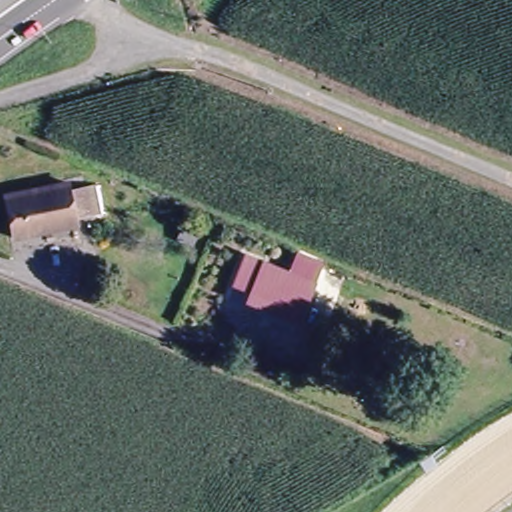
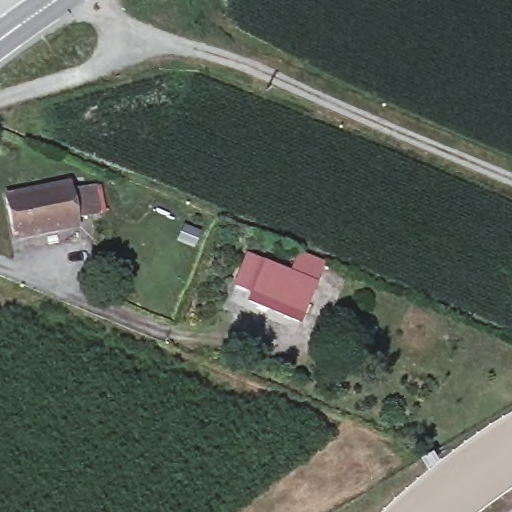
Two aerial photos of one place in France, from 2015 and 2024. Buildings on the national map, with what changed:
unchanged [(69,180),(70,185),(91,181),(97,210),(76,213),(78,221),(17,232),(10,191),(69,180)]
unchanged [(323,262),(295,321),(245,299),(251,287),(237,281),(249,256),(288,275),(298,253),(323,262)]

